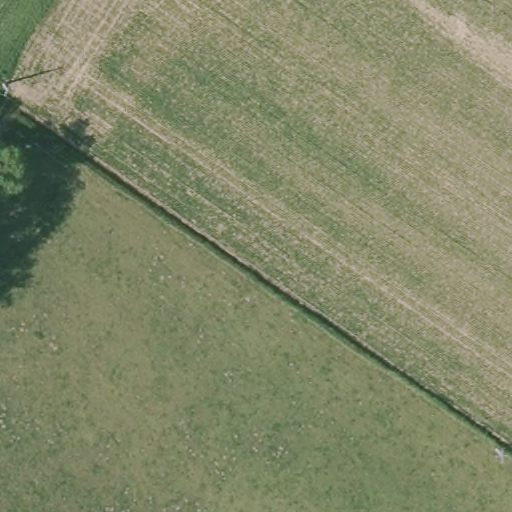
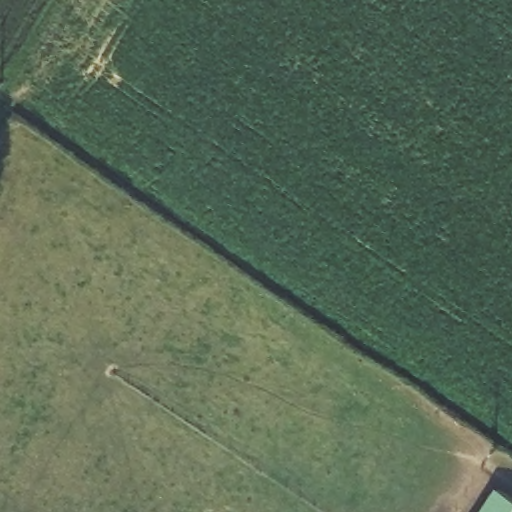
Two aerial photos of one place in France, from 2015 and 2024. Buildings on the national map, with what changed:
new [(495,492),(512,502),(512,512),(481,512),(495,492)]

